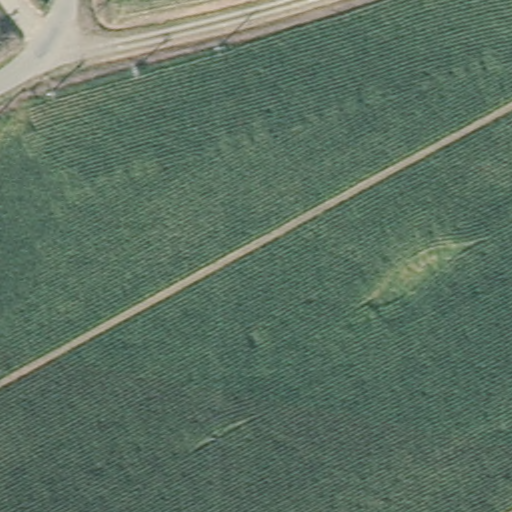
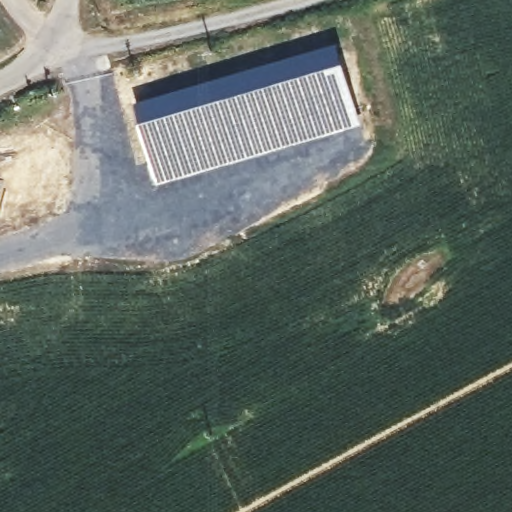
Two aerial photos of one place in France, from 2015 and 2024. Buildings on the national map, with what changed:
new [(235,73),(271,66),(269,62),(341,43),(347,60),(141,120),(136,103),(235,73)]
new [(347,60),(365,123),(158,185),(141,120),(347,60)]

